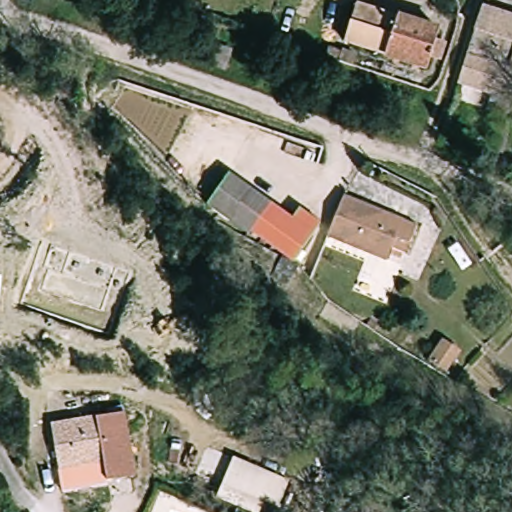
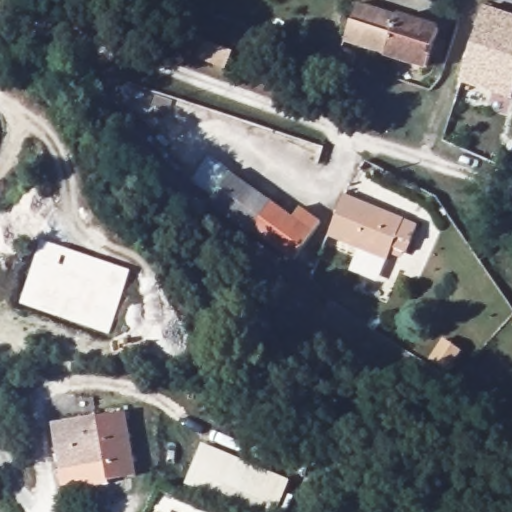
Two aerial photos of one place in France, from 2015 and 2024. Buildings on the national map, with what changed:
unchanged [(440,66),(432,63),(428,76),(346,45),(356,13),(359,5),(441,35),(437,47),(446,50),(440,66)]
unchanged [(482,61),(512,72),(512,80),(506,98),(464,81),(487,5),(498,9),(482,61)]
unchanged [(482,61),(498,9),(512,14),(512,72),(482,61)]
unchanged [(227,71),(190,58),(196,37),(236,50),(227,71)]
unchanged [(506,98),(512,80),(512,101),(506,98)]
unchanged [(304,210),(323,226),(296,267),(258,237),(253,244),(213,210),(226,192),(213,181),(225,162),(238,174),(295,222),(304,210)]
unchanged [(346,195),(422,227),(413,259),(394,252),(390,261),(334,235),(346,195)]
new [(109,334),(19,304),(43,241),(131,270),(109,334)]
unchanged [(437,363),(448,342),(464,352),(453,373),(437,363)]
unchanged [(79,469),(64,472),(56,423),(129,411),(141,479),(113,484),(83,489),(79,469)]
unchanged [(229,484),(240,457),(296,482),(284,510),(269,503),(266,512),(254,512),(223,497),(229,484)]

